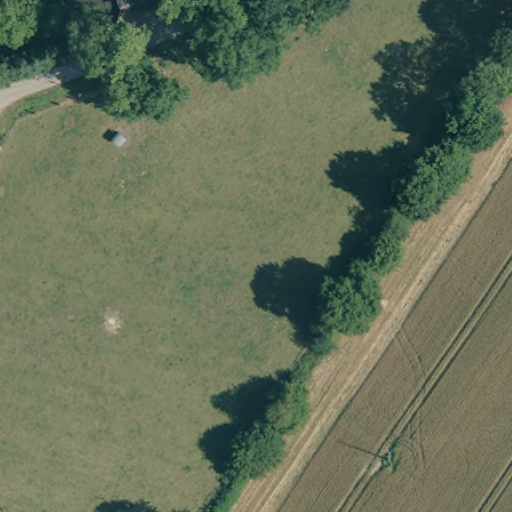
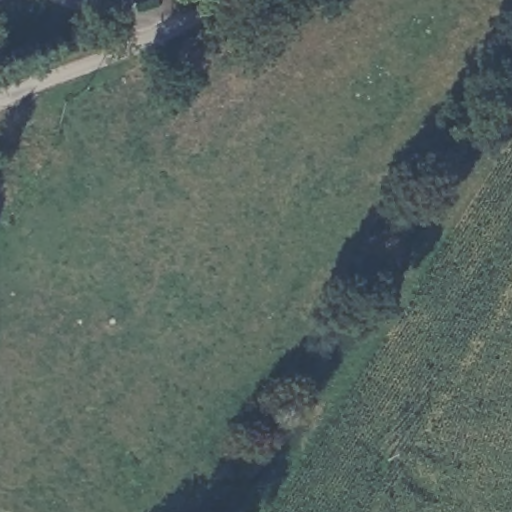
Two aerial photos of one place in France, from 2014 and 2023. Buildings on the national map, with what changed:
unchanged [(122,6),(120,0),(144,0),(122,6)]

